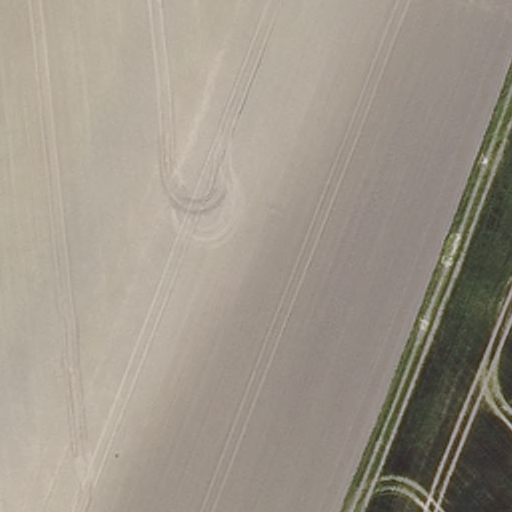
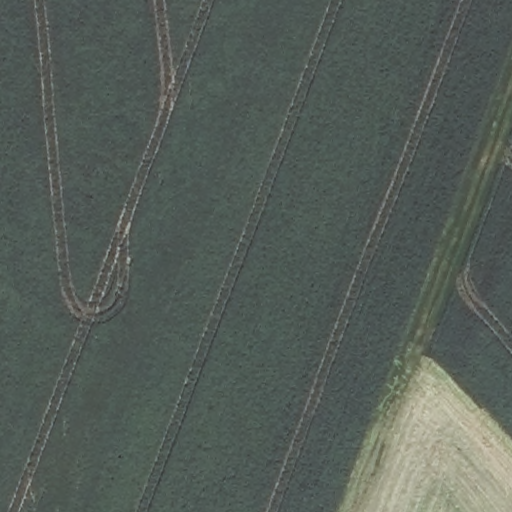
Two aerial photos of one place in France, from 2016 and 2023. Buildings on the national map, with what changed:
[]

